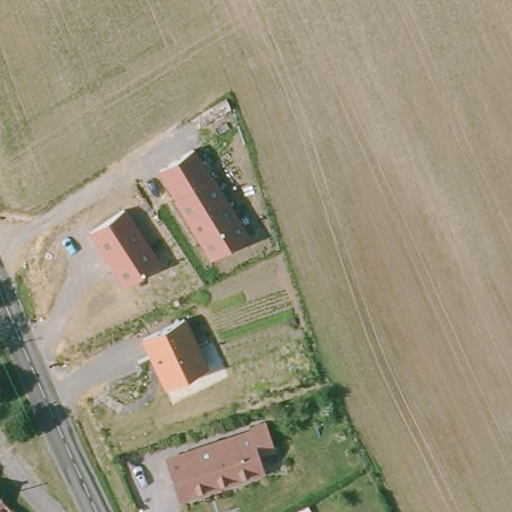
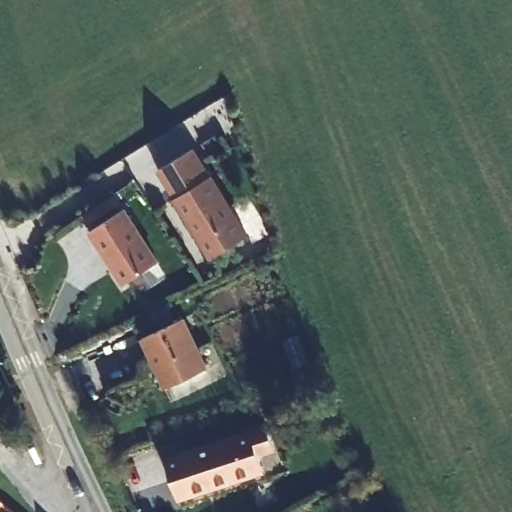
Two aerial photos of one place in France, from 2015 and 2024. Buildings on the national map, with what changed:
unchanged [(250,235),(209,258),(159,170),(196,149),(250,235)]
unchanged [(159,262),(124,285),(88,231),(125,209),(159,262)]
unchanged [(184,318),(209,367),(166,387),(142,337),(184,318)]
unchanged [(162,464),(248,435),(247,431),(262,425),(264,430),(271,452),(256,457),(261,473),(176,502),(162,464)]
unchanged [(0,512),(0,502),(10,512),(0,512)]

